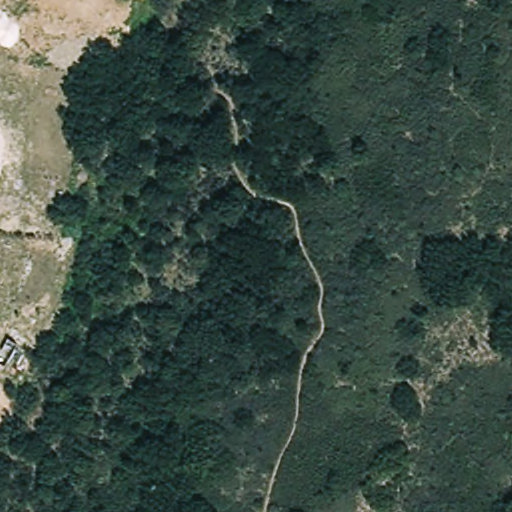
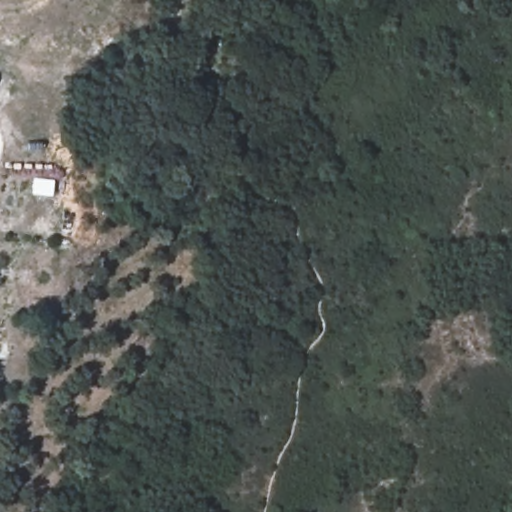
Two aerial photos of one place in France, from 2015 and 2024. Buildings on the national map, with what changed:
[]

